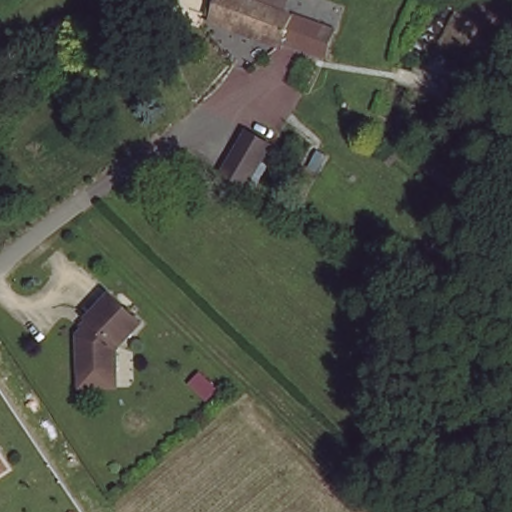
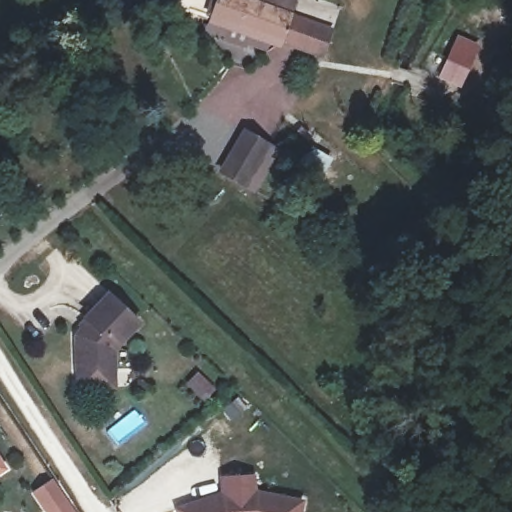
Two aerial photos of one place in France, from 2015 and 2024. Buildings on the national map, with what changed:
unchanged [(217,0),(281,0),(280,4),(338,25),(328,57),(210,20),(217,0)]
unchanged [(220,167),(249,122),(273,142),(245,182),(220,167)]
unchanged [(114,342),(117,382),(74,384),(70,325),(106,288),(140,319),(114,342)]
unchanged [(1,463),(0,464),(0,463),(1,463)]
new [(218,491),(218,476),(254,473),(255,490),(304,499),(301,512),(174,512),(173,508),(218,491)]
new [(76,512),(44,512),(31,491),(52,476),(76,512)]

